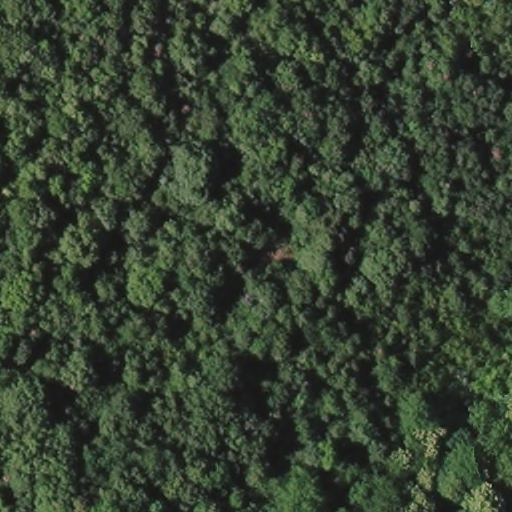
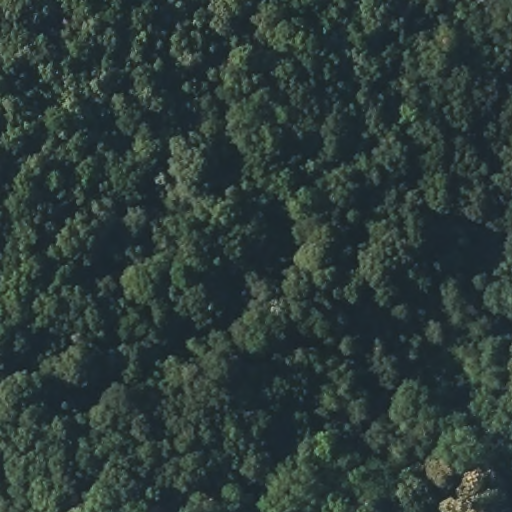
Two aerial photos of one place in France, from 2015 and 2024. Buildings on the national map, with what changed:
[]

